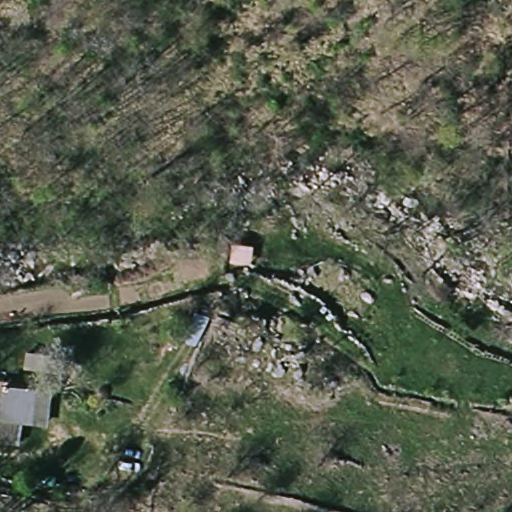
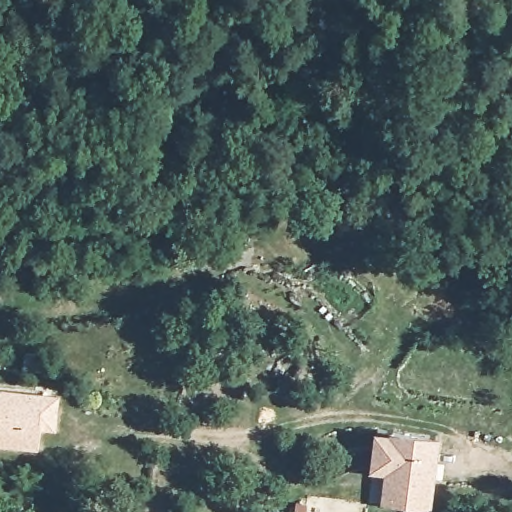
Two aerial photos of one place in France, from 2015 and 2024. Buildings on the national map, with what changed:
unchanged [(194,306),(211,315),(198,345),(183,341),(194,306)]
unchanged [(19,445),(0,442),(0,401),(3,384),(50,391),(48,405),(43,427),(21,424),(19,445)]
new [(432,512),(427,512),(380,507),(383,476),(368,474),(372,431),(385,433),(386,429),(439,436),(432,512)]

